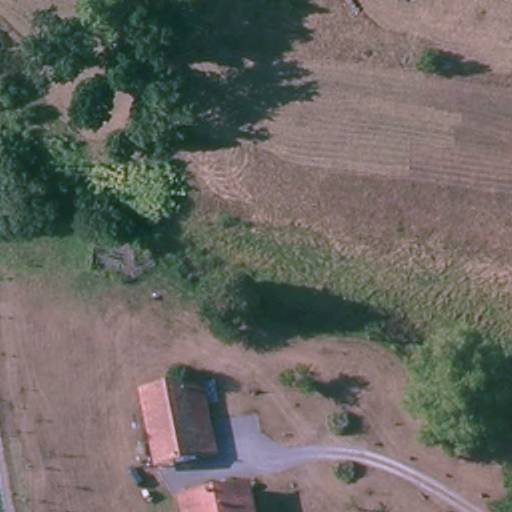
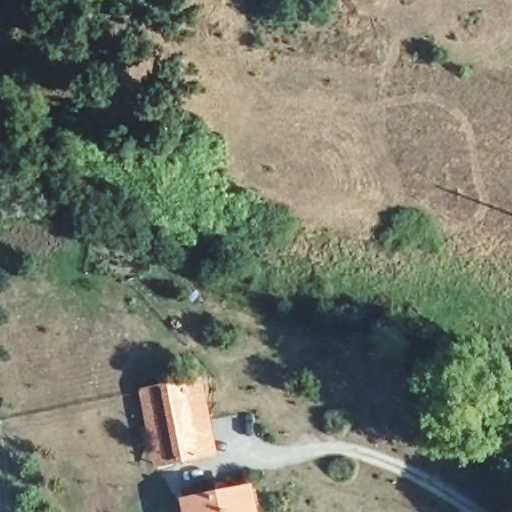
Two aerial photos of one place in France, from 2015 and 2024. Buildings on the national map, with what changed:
unchanged [(192,387),(196,387),(200,407),(212,460),(193,464),(177,391),(192,387)]
unchanged [(177,391),(193,464),(174,469),(157,395),(177,391)]
unchanged [(155,473),(139,399),(157,395),(174,469),(155,473)]
unchanged [(246,493),(251,512),(183,512),(182,508),(234,496),(246,493)]

